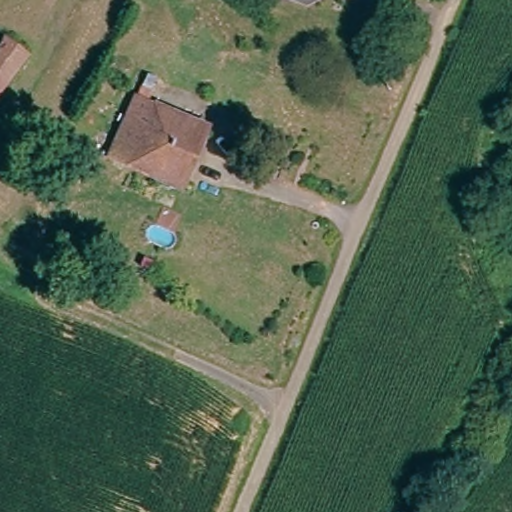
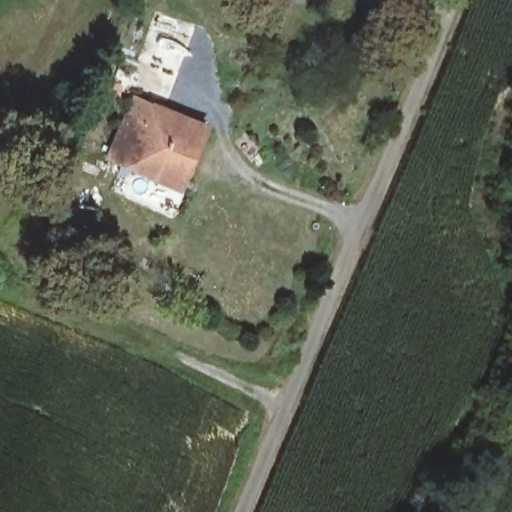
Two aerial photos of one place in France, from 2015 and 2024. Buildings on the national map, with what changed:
demolished [(0,107),(0,41),(5,34),(37,59),(0,107)]
unchanged [(178,187),(106,160),(136,93),(207,126),(178,187)]

